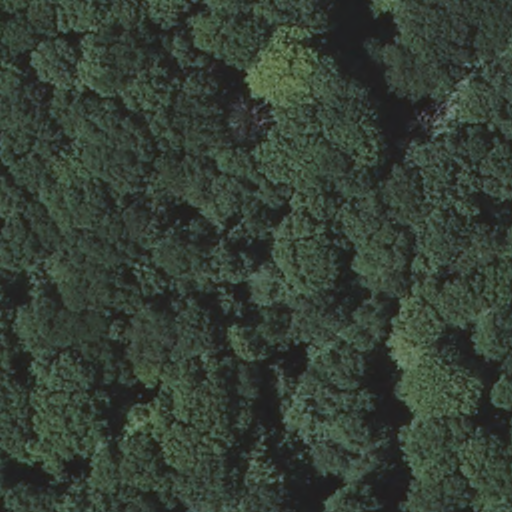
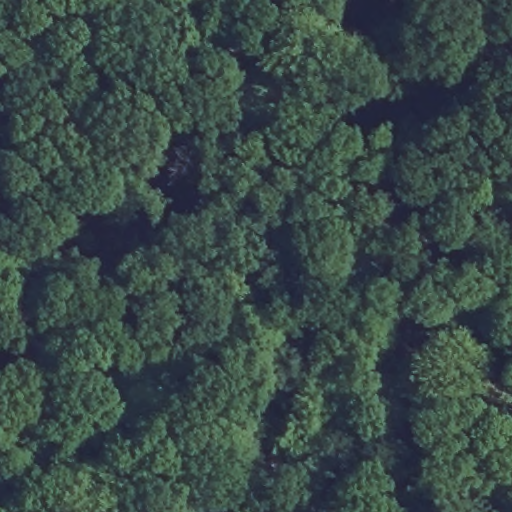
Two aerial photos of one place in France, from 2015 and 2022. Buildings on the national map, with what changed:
[]

